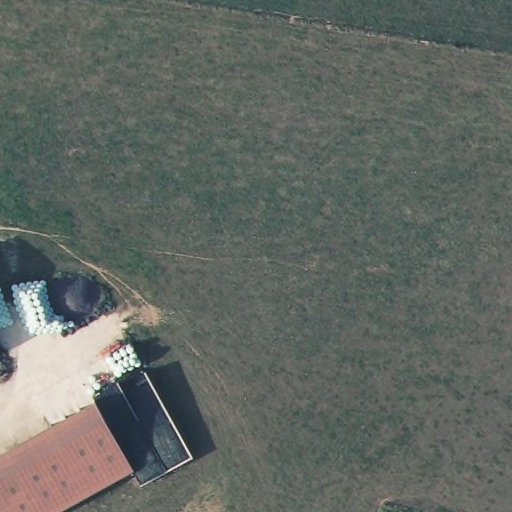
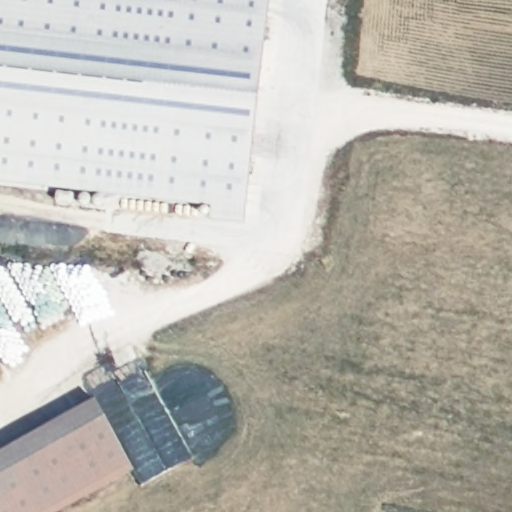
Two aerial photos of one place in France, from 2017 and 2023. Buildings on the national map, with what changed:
new [(208,219),(210,206),(0,181),(0,0),(270,0),(244,223),(208,219)]
unchanged [(127,476),(61,512),(0,512),(0,456),(89,407),(127,476)]

